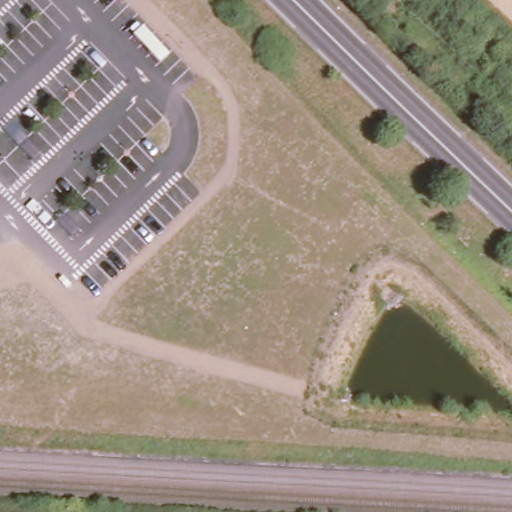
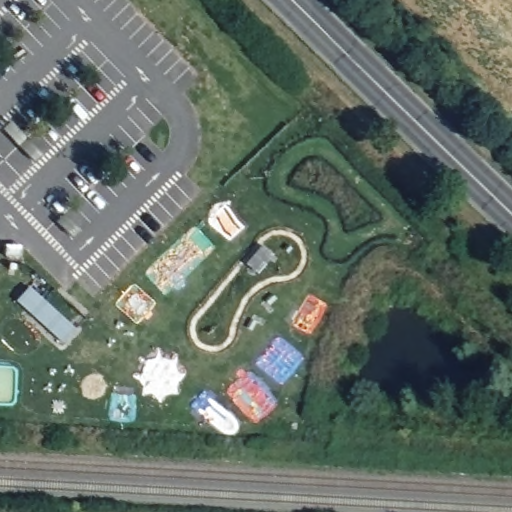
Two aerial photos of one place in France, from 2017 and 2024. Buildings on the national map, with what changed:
unchanged [(25,139),(17,146),(5,132),(12,125),(25,139)]
unchanged [(40,154),(32,161),(20,147),(29,140),(40,154)]

